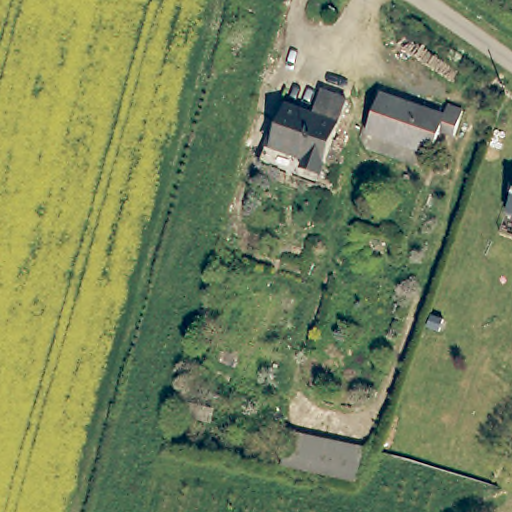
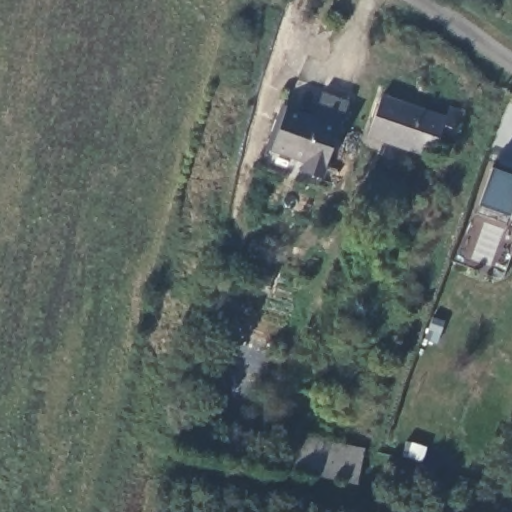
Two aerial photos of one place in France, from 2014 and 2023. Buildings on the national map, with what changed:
unchanged [(324,181),(284,169),(270,164),(290,103),(301,106),(317,111),(325,88),(351,96),(324,181)]
unchanged [(466,109),(458,134),(444,130),(436,155),(370,133),(383,95),(447,116),(451,104),(466,109)]
new [(509,214),(479,203),(491,166),(512,174),(512,207),(508,216),(509,214)]
unchanged [(512,207),(512,217),(508,216),(512,207)]
unchanged [(364,446),(357,481),(284,467),(291,432),(364,446)]

